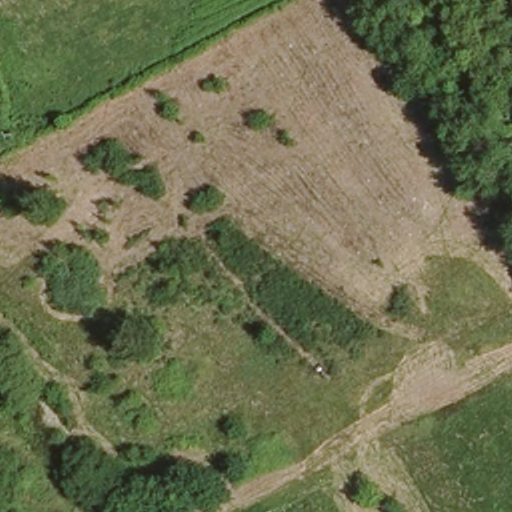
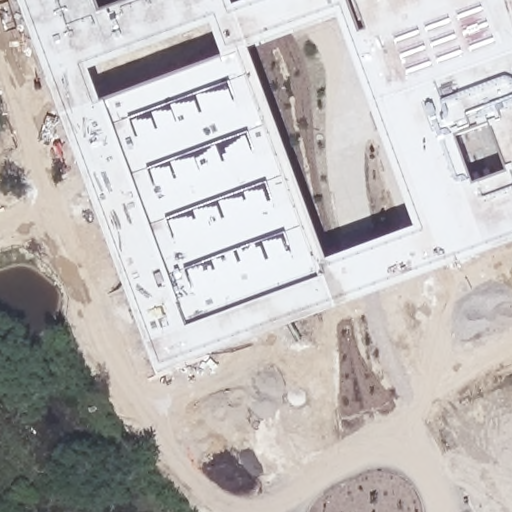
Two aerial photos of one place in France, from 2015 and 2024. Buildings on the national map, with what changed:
new [(156,374),(19,0),(512,0),(512,243),(156,374)]

